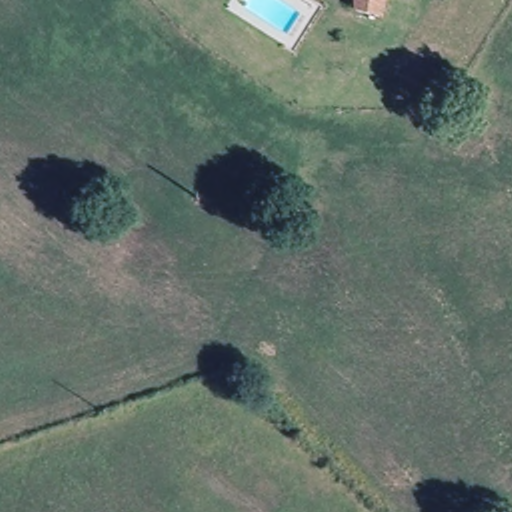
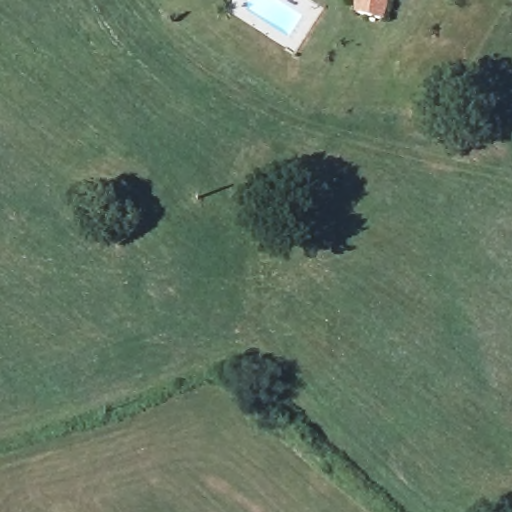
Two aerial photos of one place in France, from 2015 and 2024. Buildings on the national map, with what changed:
unchanged [(363,3),(363,0),(390,0),(391,1),(363,3)]

